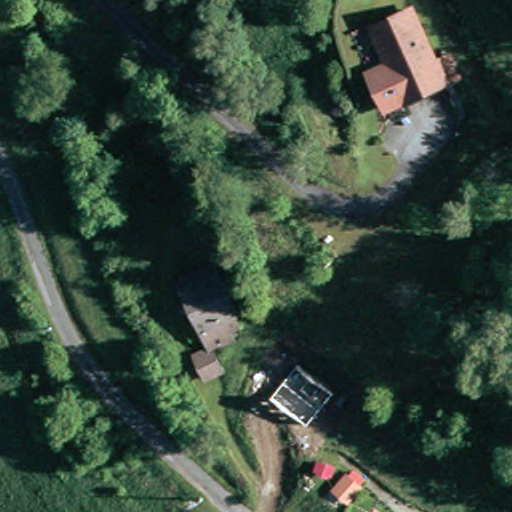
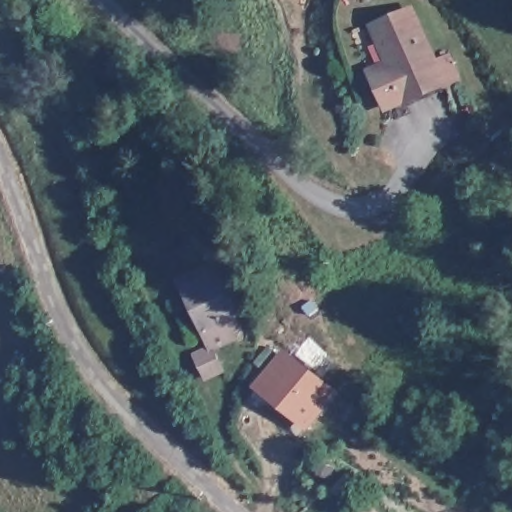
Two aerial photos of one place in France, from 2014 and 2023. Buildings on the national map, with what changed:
unchanged [(442,83),(403,99),(400,94),(381,103),(369,75),(387,68),(371,26),(410,9),(434,63),(447,58),(456,76),(442,83)]
unchanged [(174,143),(166,124),(179,119),(187,137),(174,143)]
unchanged [(212,348),(220,367),(203,374),(191,348),(207,340),(180,283),(174,269),(210,254),(216,266),(235,308),(240,320),(225,328),(230,339),(212,348)]
new [(337,394),(307,431),(251,387),(282,348),(337,394)]
unchanged [(334,494),(338,489),(348,477),(359,487),(350,498),(345,503),(334,494)]

